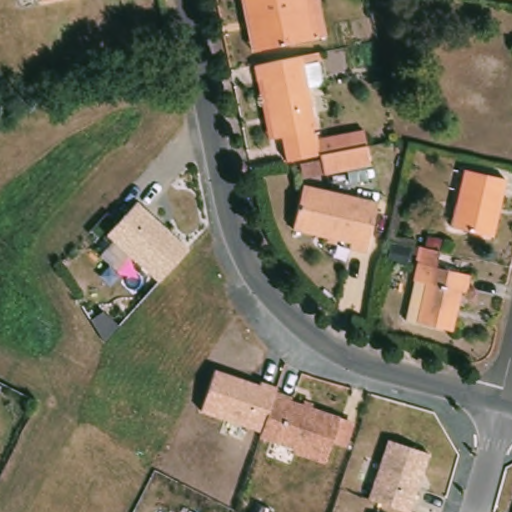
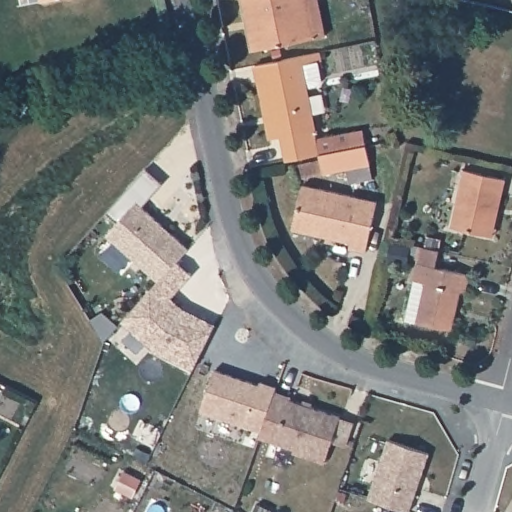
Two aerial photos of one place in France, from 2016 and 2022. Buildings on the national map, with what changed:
unchanged [(39,0),(45,0),(40,1),(39,0)]
unchanged [(249,0),(313,0),(321,38),(268,49),(259,50),(253,21),(249,0)]
unchanged [(323,154),(312,156),(309,156),(290,161),(286,136),(280,137),(274,139),(263,81),(260,65),(276,61),(278,61),(320,53),(324,52),(326,61),(321,61),(325,81),(322,86),(311,88),(321,139),(353,133),(368,130),(371,145),(370,145),(374,165),(327,174),(323,154)]
unchanged [(486,236),(450,228),(463,170),(504,180),(500,198),(491,237),(486,236)]
unchanged [(365,253),(348,249),(350,242),(292,229),(302,185),(376,202),(365,253)]
unchanged [(108,235),(136,203),(190,250),(160,283),(108,235)]
unchanged [(391,258),(395,241),(408,244),(404,261),(391,258)]
unchanged [(422,281),(426,264),(422,263),(426,247),(446,251),(442,268),(475,275),(471,292),(467,291),(457,331),(424,324),(413,321),(422,281)]
new [(193,369),(155,350),(125,321),(160,283),(179,262),(192,274),(171,296),(186,309),(213,324),(193,369)]
unchanged [(215,372),(260,384),(261,379),(278,384),(275,393),(262,430),(200,411),(215,372)]
unchanged [(294,398),(292,404),(341,419),(326,467),(290,454),(292,448),(260,437),(275,393),(294,398)]
unchanged [(433,452),(412,512),(407,512),(370,500),(388,440),(433,452)]

